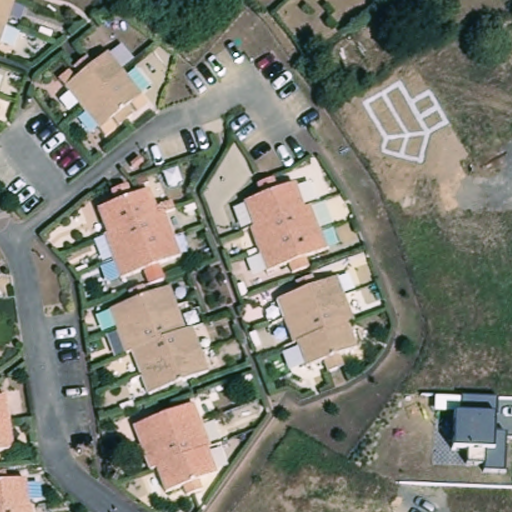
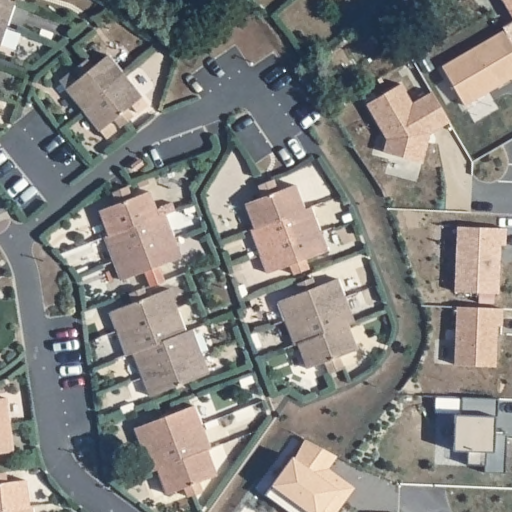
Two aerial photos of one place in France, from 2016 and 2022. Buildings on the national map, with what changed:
unchanged [(1,45),(0,45),(0,0),(12,0),(17,2),(1,45)]
new [(501,29),(512,21),(512,82),(510,79),(463,106),(440,67),(502,30),(501,29)]
unchanged [(77,73),(71,65),(85,54),(91,61),(105,50),(144,100),(134,108),(128,100),(124,104),(130,110),(117,121),(111,114),(107,117),(113,125),(103,134),(96,125),(63,84),(77,73)]
new [(400,83),(411,102),(431,91),(448,121),(428,132),(421,161),(382,151),(385,138),(365,103),(400,83)]
unchanged [(252,231),(255,230),(245,205),(263,198),(259,187),(274,181),(278,192),(296,186),(305,211),(312,209),(328,252),(307,260),(310,270),(294,276),(290,267),(269,275),(252,231)]
unchanged [(107,238),(110,237),(101,210),(117,204),(114,194),(128,188),(132,199),(150,191),(157,209),(161,207),(161,206),(170,202),(174,211),(166,215),(182,257),(160,265),(166,282),(151,287),(145,271),(123,280),(107,238)]
new [(457,226),(505,229),(504,245),(500,245),(497,293),(453,291),(457,226)]
unchanged [(301,295),(297,286),(314,279),(317,288),(339,280),(355,324),(349,326),(358,350),(342,357),(346,369),(331,375),(326,362),(308,370),(299,345),(296,346),(280,302),(301,295)]
unchanged [(187,332),(193,330),(210,373),(151,395),(134,353),(127,355),(112,312),(133,304),(130,295),(137,292),(145,290),(148,298),(170,290),(187,332)]
new [(455,306),(501,309),(501,326),(496,325),(494,366),(453,365),(455,306)]
unchanged [(496,396),(494,433),(508,432),(505,472),(483,471),(483,465),(466,463),(466,450),(453,448),(454,410),(460,410),(460,393),(496,396)]
unchanged [(0,453),(0,398),(7,397),(15,450),(0,453)]
unchanged [(212,445),(209,446),(218,470),(200,477),(204,486),(189,492),(185,482),(167,490),(158,465),(151,468),(135,425),(195,401),(212,445)]
new [(341,503),(335,512),(307,512),(286,497),(282,503),(266,491),(291,457),(293,458),(304,440),(335,456),(326,469),(349,485),(353,487),(341,503)]
unchanged [(0,474),(5,473),(7,483),(27,480),(30,507),(33,506),(34,512),(0,512),(0,474)]

